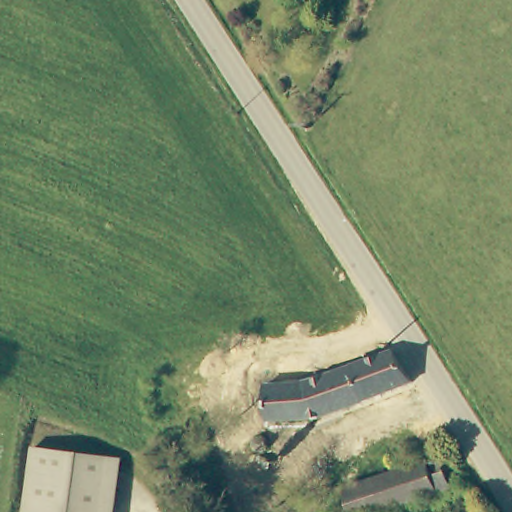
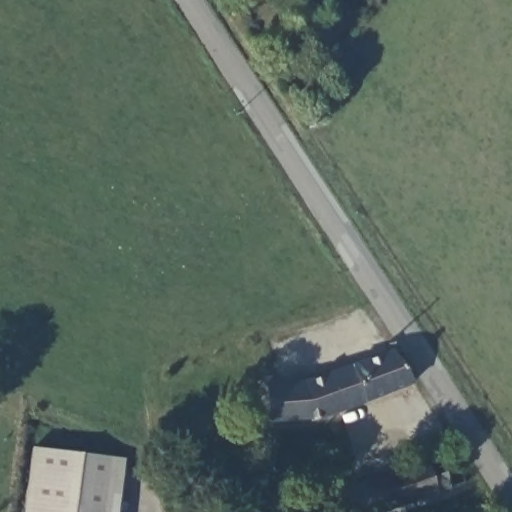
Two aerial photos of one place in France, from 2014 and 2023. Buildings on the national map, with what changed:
unchanged [(412,381),(310,417),(266,423),(265,410),(264,385),(300,382),(357,362),(387,351),(391,350),(412,381)]
unchanged [(293,453),(269,455),(267,437),(292,435),(293,453)]
unchanged [(265,440),(266,443),(266,448),(262,452),(258,453),(254,451),(251,446),(252,441),(255,438),(260,437),(265,440)]
unchanged [(105,512),(29,512),(37,455),(112,466),(105,512)]
unchanged [(454,488),(437,494),(382,512),(339,512),(333,491),(429,462),(445,458),(454,488)]

